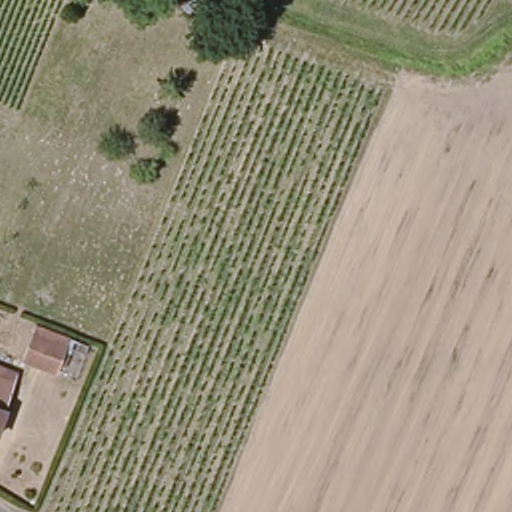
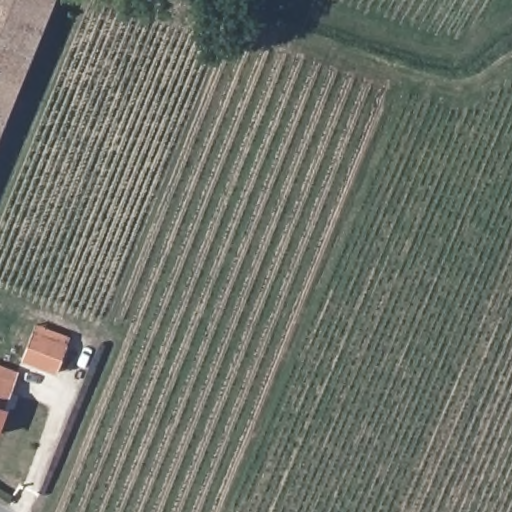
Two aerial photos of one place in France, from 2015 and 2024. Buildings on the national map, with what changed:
new [(54,0),(0,131),(0,0),(54,0)]
unchanged [(59,373),(16,357),(32,318),(75,333),(59,373)]
unchanged [(22,370),(17,381),(0,422),(0,362),(22,370)]

